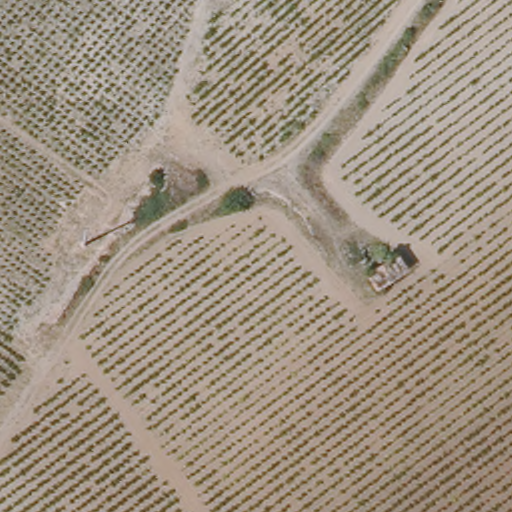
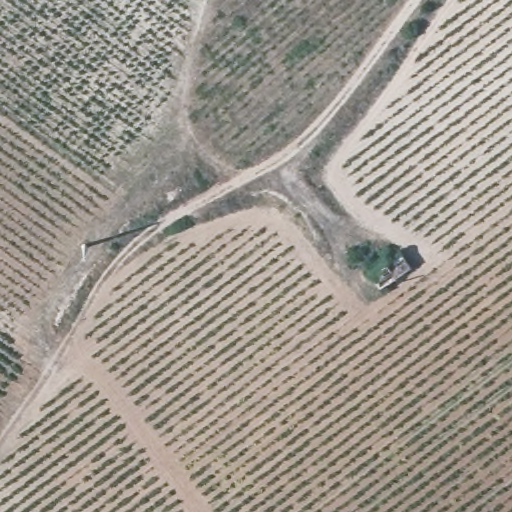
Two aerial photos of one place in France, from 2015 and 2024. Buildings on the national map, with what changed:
unchanged [(366,273),(395,253),(405,269),(376,288),(366,273)]

